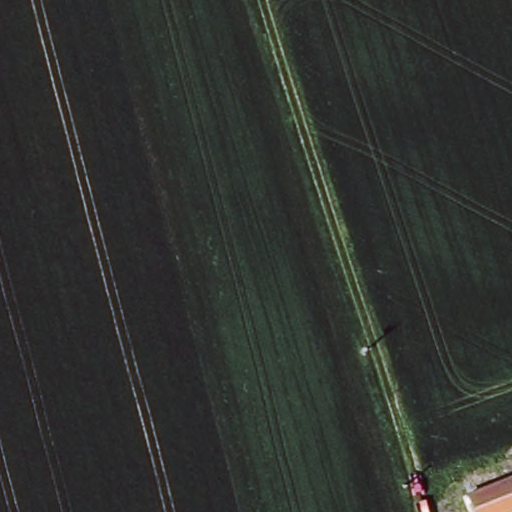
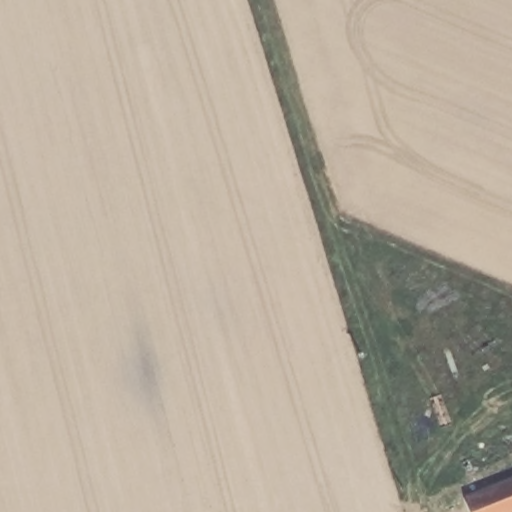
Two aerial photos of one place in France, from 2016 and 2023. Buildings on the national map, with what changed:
unchanged [(466,495),(512,475),(512,511),(510,512),(473,512),(466,495)]

